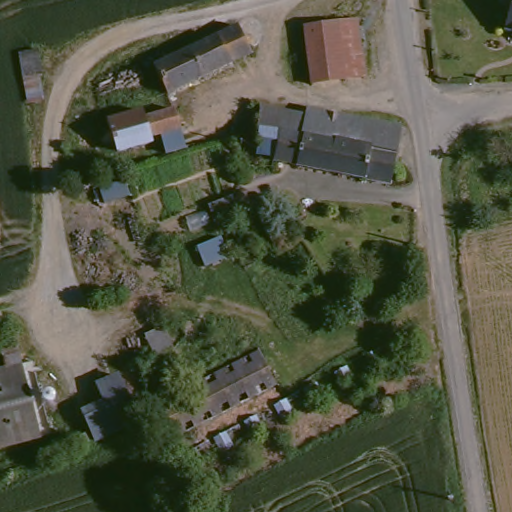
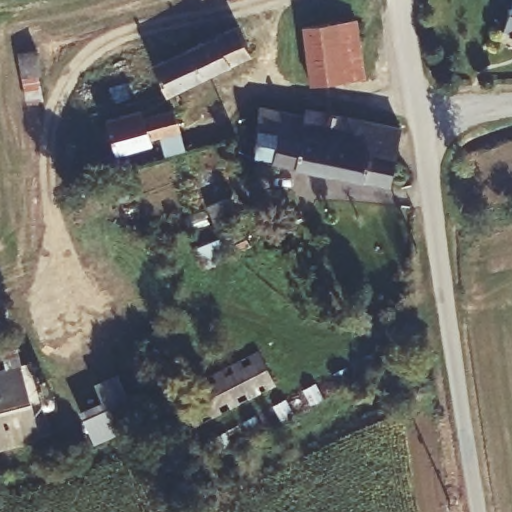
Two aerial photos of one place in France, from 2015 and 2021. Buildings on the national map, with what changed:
unchanged [(504,2),(508,3),(509,0),(512,0),(512,28),(499,25),(504,2)]
unchanged [(316,85),(306,31),(355,20),(365,75),(316,85)]
unchanged [(216,34),(235,26),(249,57),(230,66),(200,82),(186,47),(216,34)]
unchanged [(186,47),(200,82),(164,95),(151,65),(186,47)]
unchanged [(141,108),(143,115),(175,107),(180,127),(148,135),(149,141),(115,149),(112,141),(106,142),(102,141),(100,139),(99,134),(101,129),(108,125),(106,117),(141,108)]
unchanged [(402,125),(397,184),(306,172),(276,169),(277,165),(261,164),(257,161),(242,160),(240,156),(240,154),(229,152),(230,144),(239,142),(242,115),(260,116),(278,117),(306,119),(307,112),(402,125)]
unchanged [(199,270),(191,245),(217,235),(226,260),(199,270)]
unchanged [(159,385),(139,337),(162,326),(182,372),(159,385)]
unchanged [(253,356),(271,389),(170,444),(154,411),(253,356)]
unchanged [(1,370),(0,363),(0,360),(12,357),(15,368),(35,438),(0,447),(0,370),(1,370)]
unchanged [(89,449),(75,410),(99,400),(94,383),(115,375),(136,425),(89,449)]

